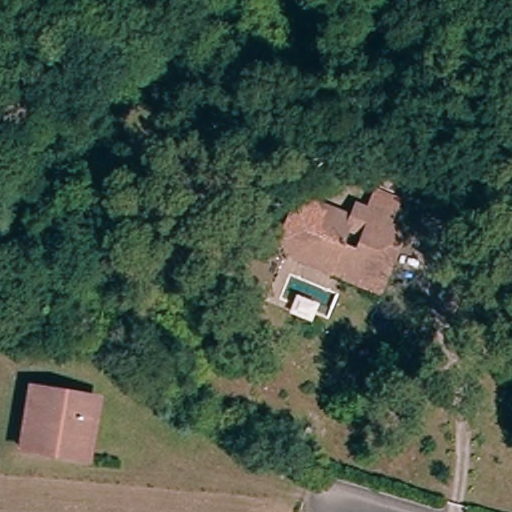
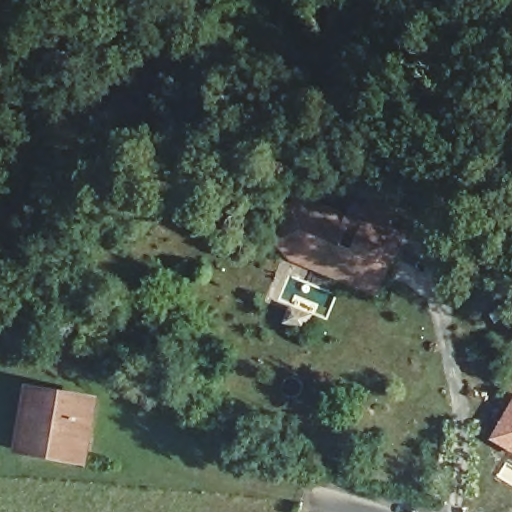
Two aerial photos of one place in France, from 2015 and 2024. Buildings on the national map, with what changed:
unchanged [(297,270),(300,265),(320,217),(352,230),(358,217),(370,222),(373,216),(378,204),(400,214),(395,225),(390,238),(404,244),(385,292),(379,305),(297,270)]
unchanged [(35,391),(98,402),(86,465),(23,453),(35,391)]
new [(512,400),(512,453),(490,439),(512,400)]

